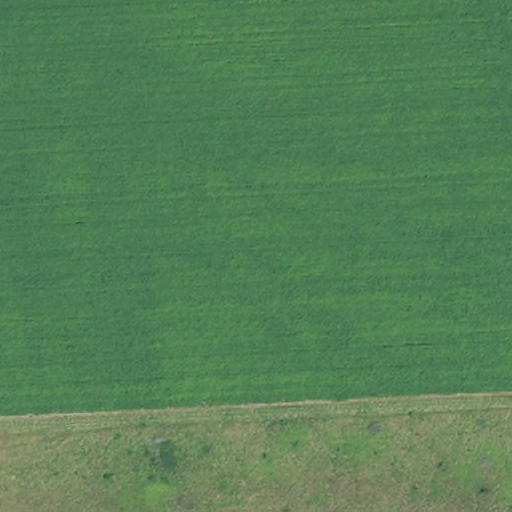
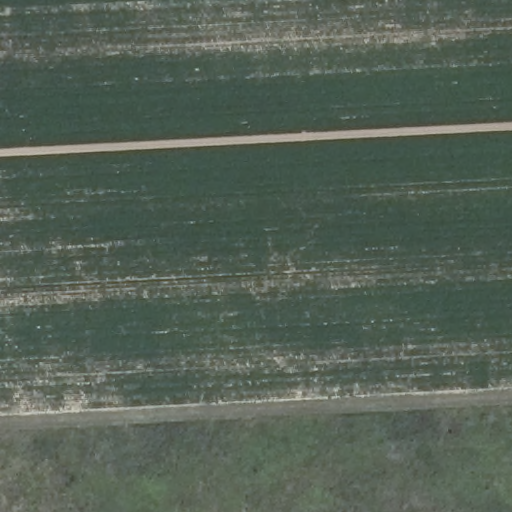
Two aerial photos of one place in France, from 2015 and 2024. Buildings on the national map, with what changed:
[]

